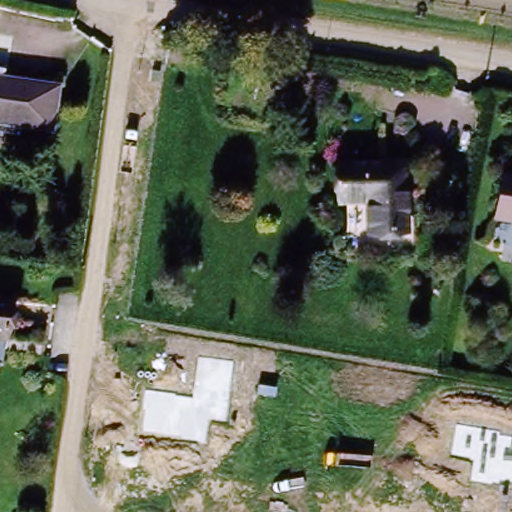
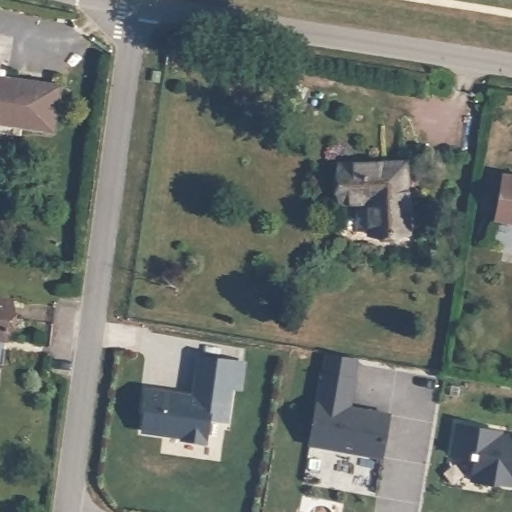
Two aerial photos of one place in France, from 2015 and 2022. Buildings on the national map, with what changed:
unchanged [(32,122),(31,129),(0,124),(0,86),(1,84),(37,89),(38,85),(59,89),(54,125),(32,122)]
unchanged [(365,205),(339,206),(338,161),(406,161),(410,237),(367,237),(365,205)]
unchanged [(512,175),(512,226),(494,223),(503,174),(512,175)]
unchanged [(12,300),(6,339),(0,338),(0,299),(12,300)]
new [(323,375),(327,357),(356,362),(353,380),(354,380),(349,409),(390,416),(382,459),(310,446),(322,374),(323,375)]
new [(144,409),(146,391),(194,397),(200,358),(234,362),(244,364),(241,389),(231,388),(226,421),(209,419),(206,443),(183,439),(183,437),(144,431),(146,410),(144,409)]
new [(494,483),(494,484),(472,481),(475,460),(471,459),(471,458),(453,454),(458,424),(501,433),(501,436),(512,437),(512,485),(501,484),(494,483)]

